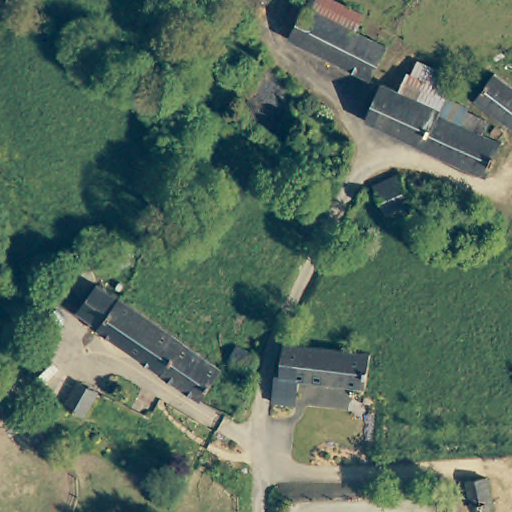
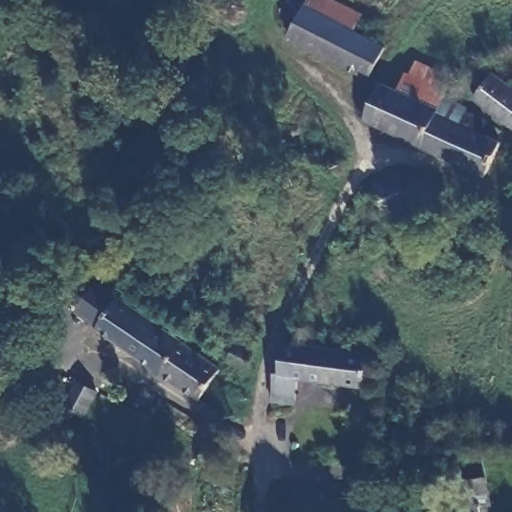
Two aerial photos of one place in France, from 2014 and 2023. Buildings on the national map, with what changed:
unchanged [(281,31),(295,4),(310,11),(314,0),(329,0),(334,2),(364,16),(355,33),(380,45),(385,47),(369,76),(368,77),(293,42),(295,37),(281,31)]
unchanged [(481,117),(474,130),(494,141),(479,170),(412,141),(409,141),(357,114),(372,79),(386,86),(393,71),(399,73),(406,60),(446,81),(439,92),(430,110),(448,120),(456,105),(481,117)]
unchanged [(487,72),(512,91),(512,128),(468,97),(487,72)]
unchanged [(370,185),(395,174),(400,188),(405,206),(380,217),(375,200),(370,185)]
unchanged [(76,312),(95,282),(221,365),(202,397),(201,400),(98,328),(76,312)]
unchanged [(271,371),(277,371),(283,337),(363,350),(358,383),(293,376),(292,393),(291,402),(268,400),(269,392),(271,371)]
unchanged [(226,357),(232,343),(250,352),(241,367),(226,357)]
unchanged [(72,379),(97,391),(86,415),(85,414),(81,412),(62,401),(72,379)]
unchanged [(485,472),(492,501),(486,502),(487,510),(482,512),(480,504),(472,506),(466,477),(485,472)]

